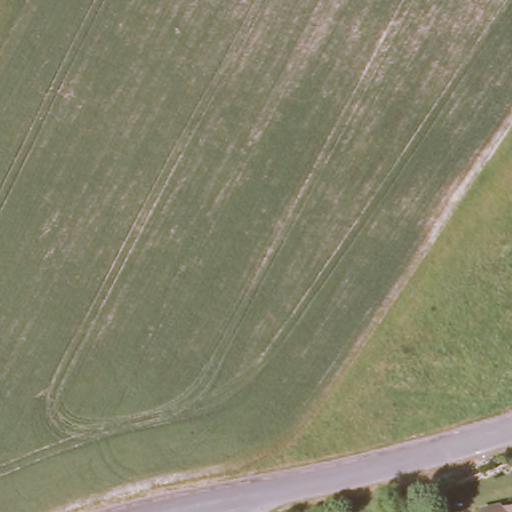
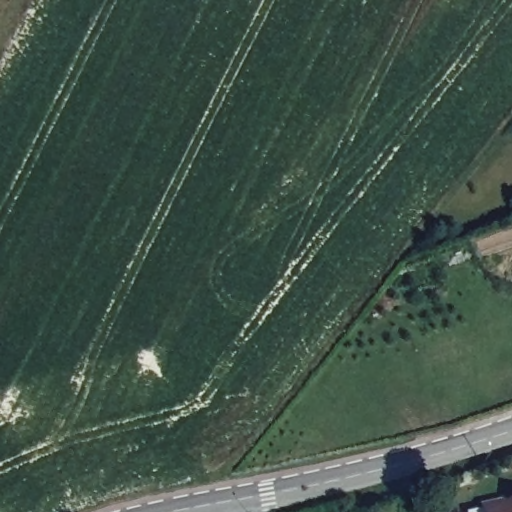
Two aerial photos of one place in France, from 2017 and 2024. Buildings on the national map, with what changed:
unchanged [(512,501),(512,512),(477,512),(477,508),(512,501)]

